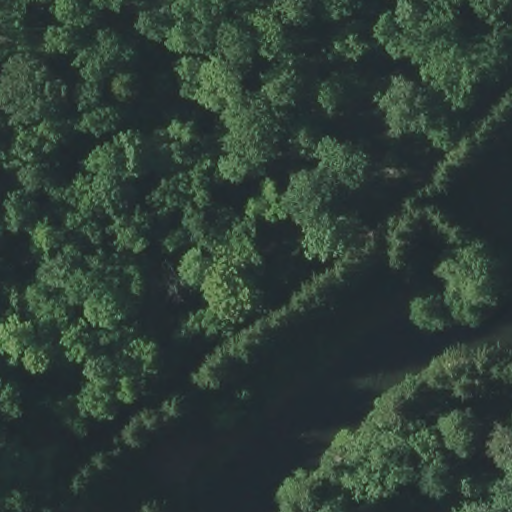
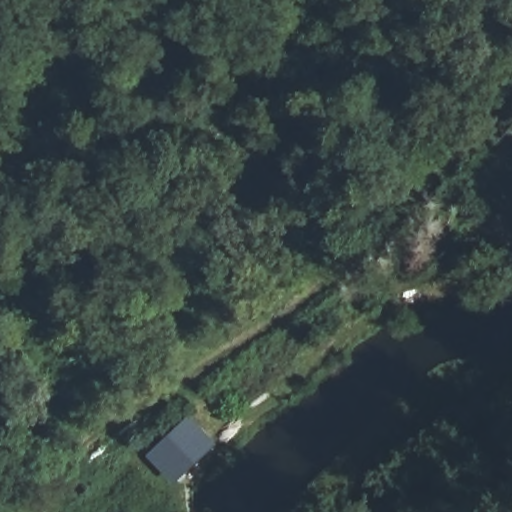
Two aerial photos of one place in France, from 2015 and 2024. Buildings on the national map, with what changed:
new [(215,445),(169,487),(143,456),(190,414),(215,445)]

